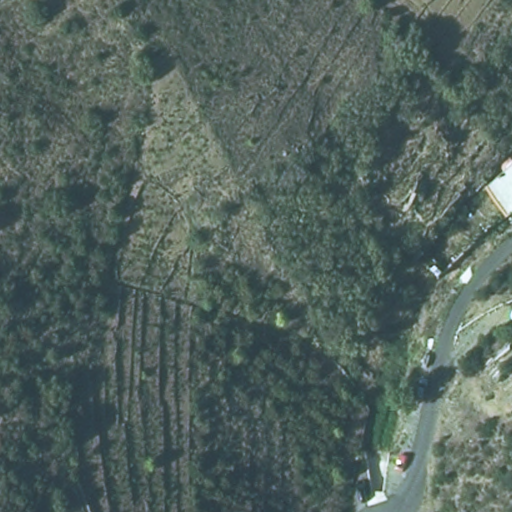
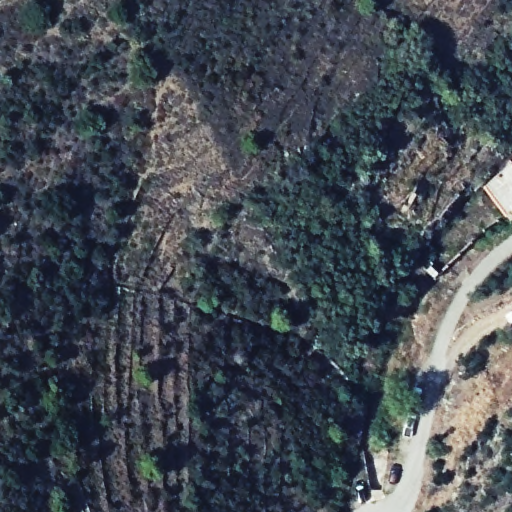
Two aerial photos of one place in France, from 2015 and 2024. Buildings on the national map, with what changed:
unchanged [(485,184),(512,169),(512,211),(505,216),(497,202),(485,184)]

